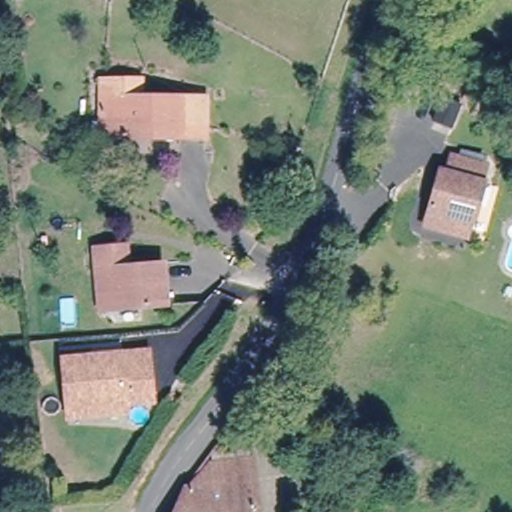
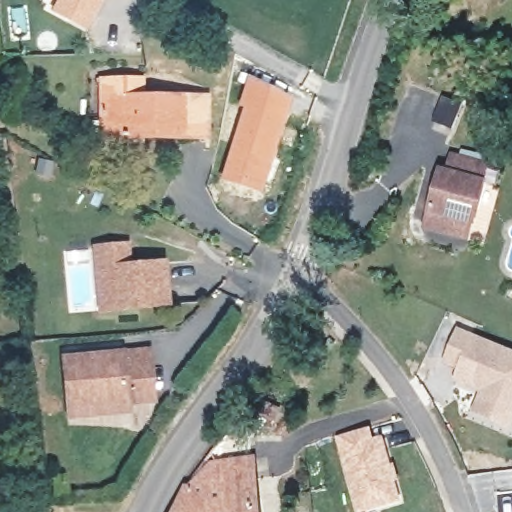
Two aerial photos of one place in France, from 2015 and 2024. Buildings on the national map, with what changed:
new [(52,12),(59,0),(57,0),(104,0),(86,30),(52,12)]
unchanged [(210,135),(90,135),(90,119),(99,119),(99,72),(144,73),(144,90),(210,91),(210,135)]
new [(292,97),(260,197),(221,180),(245,107),(240,105),(249,74),(292,97)]
unchanged [(468,109),(453,140),(436,133),(450,101),(468,109)]
unchanged [(450,226),(421,216),(440,165),(447,167),(452,152),(487,165),(482,180),(487,182),(475,216),(469,214),(462,231),(450,226)]
unchanged [(98,291),(94,246),(121,244),(124,265),(165,261),(170,305),(113,310),(100,312),(98,291)]
new [(512,429),(471,411),(480,390),(454,380),(458,367),(445,362),(458,325),(512,350),(512,429)]
unchanged [(152,373),(155,390),(156,390),(156,393),(155,393),(156,402),(70,412),(65,362),(125,355),(152,352),(154,370),(155,372),(152,373)]
new [(374,436),(385,433),(391,461),(395,460),(401,479),(397,480),(403,500),(363,512),(358,512),(335,433),(370,424),(374,436)]
unchanged [(194,473),(209,455),(224,434),(251,431),(254,452),(259,512),(176,512),(194,473)]

